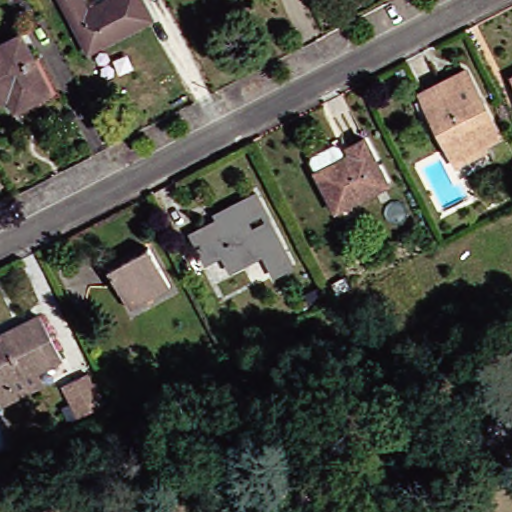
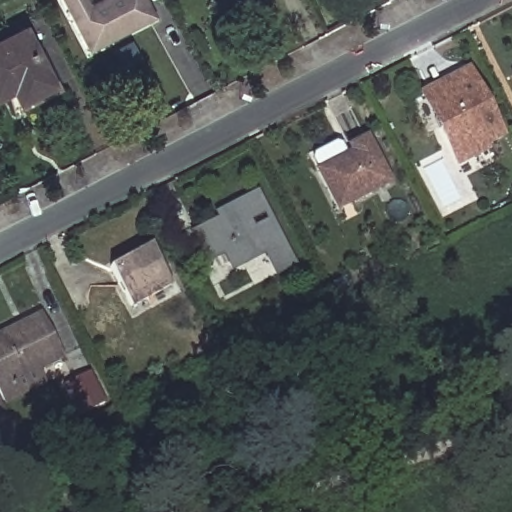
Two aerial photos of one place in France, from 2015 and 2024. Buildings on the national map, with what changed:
unchanged [(51,0),(72,0),(79,15),(108,0),(131,0),(144,26),(80,59),(51,0)]
unchanged [(13,113),(6,100),(0,103),(0,46),(16,38),(46,96),(13,113)]
unchanged [(499,136),(482,145),(484,150),(459,162),(425,95),(467,73),(499,136)]
unchanged [(511,77),(512,77),(512,79),(511,77)]
unchanged [(345,154),(362,145),(384,188),(334,214),(315,177),(310,166),(312,161),(333,150),(338,151),(344,162),(348,160),(345,154)]
unchanged [(260,218),(243,227),(248,237),(266,229),(287,271),(271,279),(261,258),(228,274),(220,258),(203,267),(189,239),(206,230),(209,235),(220,229),(215,219),(251,201),(260,218)]
unchanged [(130,303),(110,265),(151,244),(171,283),(130,303)]
unchanged [(58,359),(31,373),(38,386),(0,405),(0,404),(0,336),(37,317),(58,359)]
unchanged [(104,404),(80,417),(65,388),(89,376),(104,404)]

